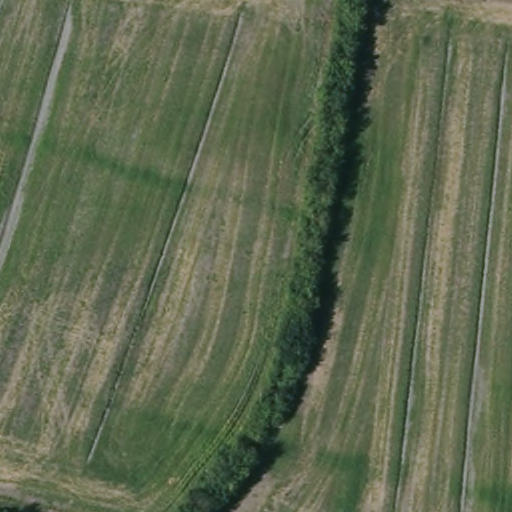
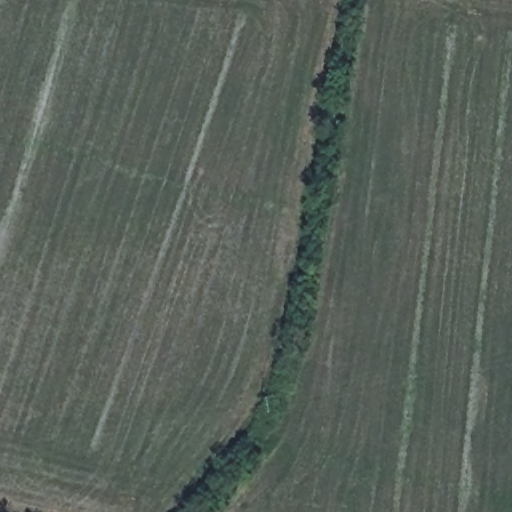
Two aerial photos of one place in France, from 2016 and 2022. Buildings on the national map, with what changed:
[]

